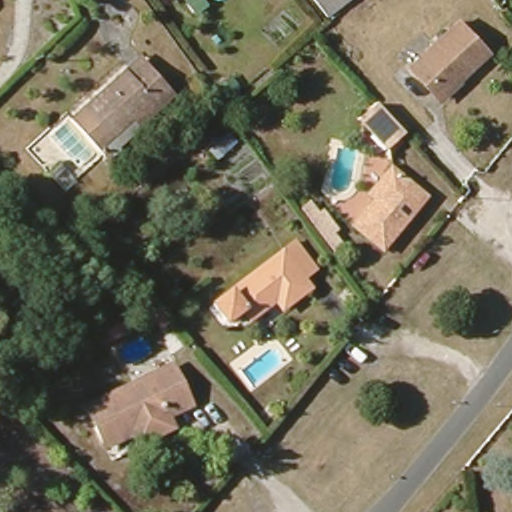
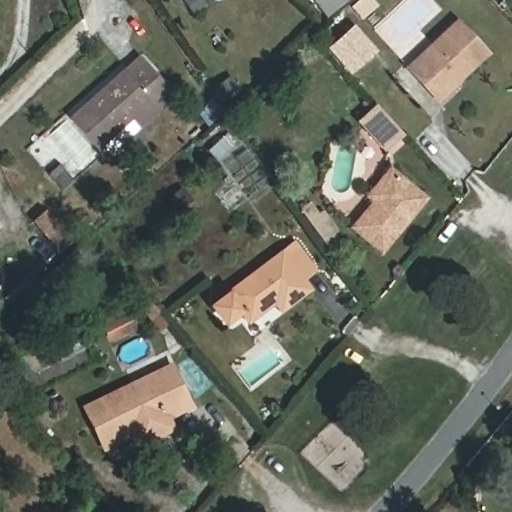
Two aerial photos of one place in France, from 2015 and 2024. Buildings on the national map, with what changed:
unchanged [(327,17),(313,0),(349,0),(327,17)]
unchanged [(440,100),(408,66),(457,21),(488,55),(440,100)]
new [(327,47),(354,23),(378,50),(351,75),(327,47)]
unchanged [(105,157),(69,117),(124,67),(139,54),(146,61),(176,94),(105,157)]
unchanged [(403,135),(388,149),(359,119),(374,105),(403,135)]
unchanged [(217,160),(208,150),(228,131),(237,140),(217,160)]
unchanged [(382,249),(354,226),(374,201),(369,196),(391,169),(424,197),(382,249)]
unchanged [(68,234),(55,246),(33,220),(45,209),(68,234)]
new [(0,226),(0,223),(1,224),(0,226)]
unchanged [(282,309),(275,300),(249,320),(242,310),(225,322),(213,305),(282,252),(294,243),(315,270),(302,279),(309,288),(282,309)]
unchanged [(44,271),(32,259),(49,244),(60,256),(44,271)]
unchanged [(158,311),(150,318),(132,296),(139,289),(158,311)]
unchanged [(138,328),(110,341),(100,321),(128,308),(138,328)]
unchanged [(138,439),(132,429),(105,442),(86,402),(170,361),(184,388),(189,401),(167,412),(173,422),(138,439)]

